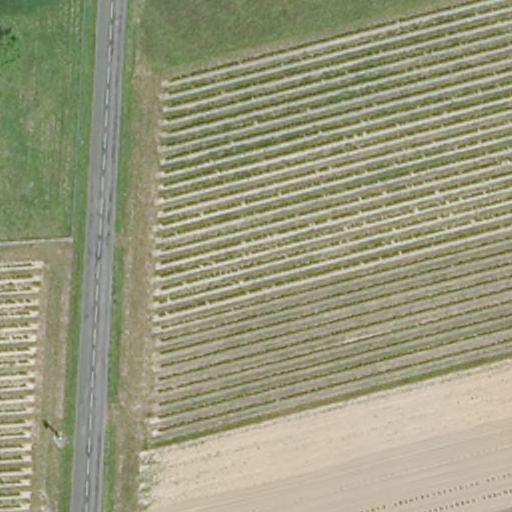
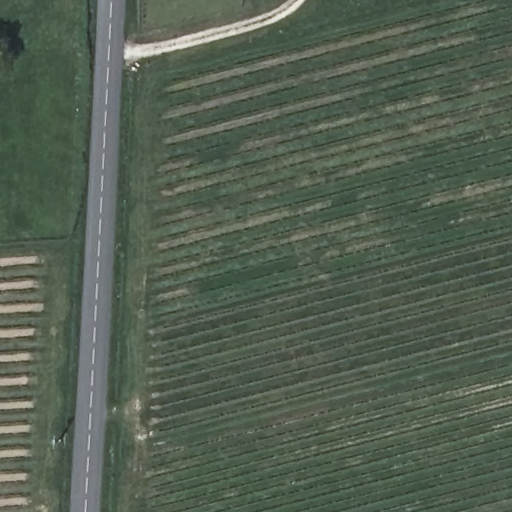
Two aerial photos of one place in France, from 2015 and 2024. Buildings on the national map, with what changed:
[]

